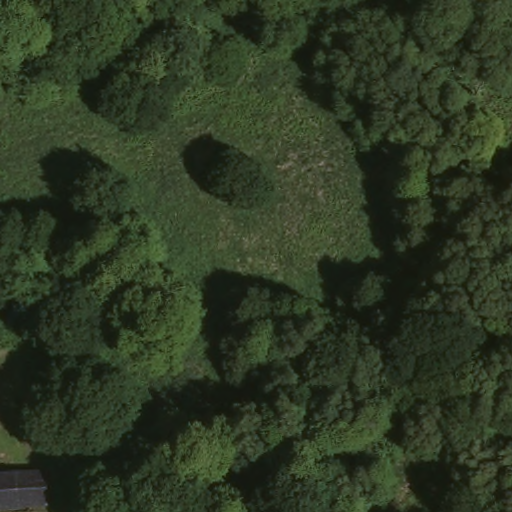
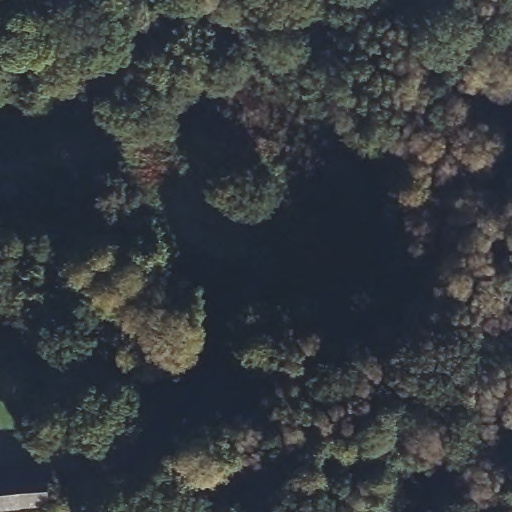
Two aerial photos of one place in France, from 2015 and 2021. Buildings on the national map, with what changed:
unchanged [(43,477),(49,509),(27,512),(0,512),(0,482),(43,477)]

